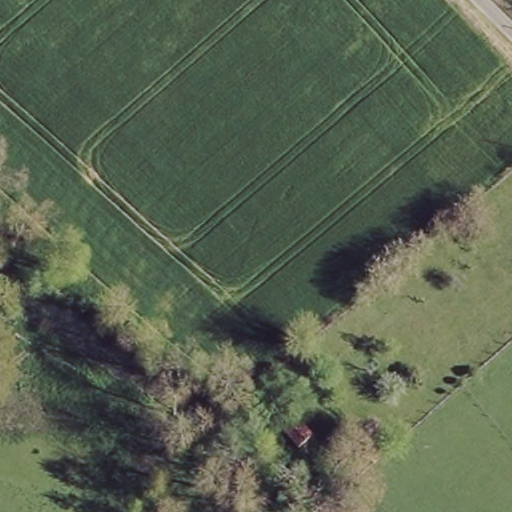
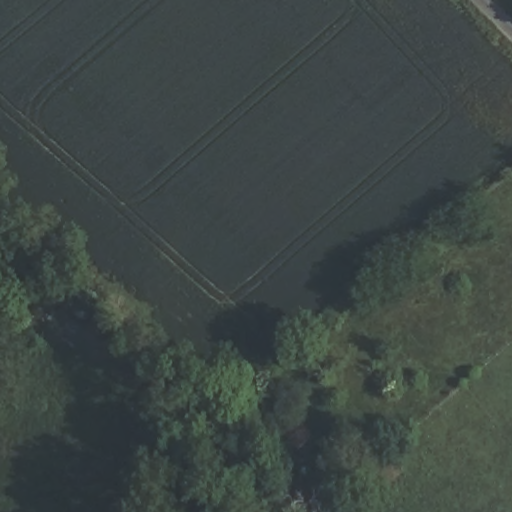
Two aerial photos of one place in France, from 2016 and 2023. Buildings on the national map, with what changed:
unchanged [(316,438),(304,449),(290,433),(303,422),(316,438)]

